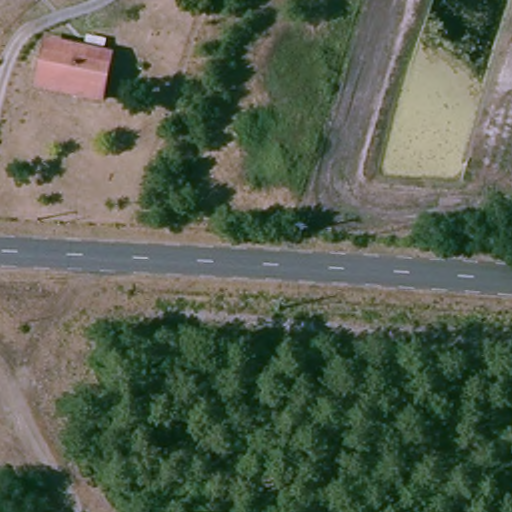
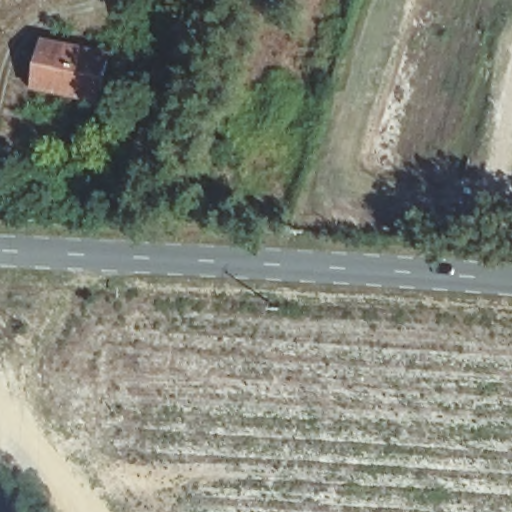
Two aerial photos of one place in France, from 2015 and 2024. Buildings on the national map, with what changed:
unchanged [(113,56),(107,100),(39,90),(49,42),(113,56)]

